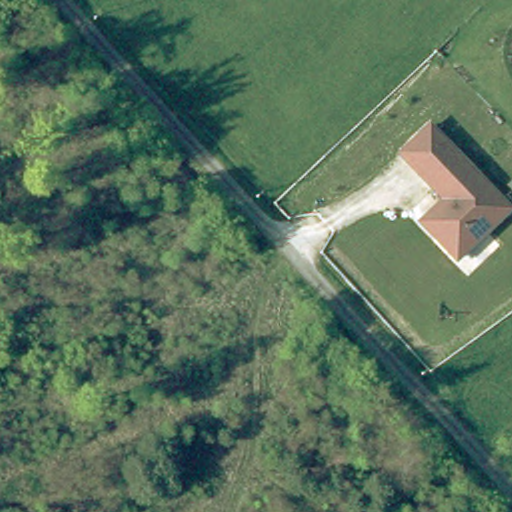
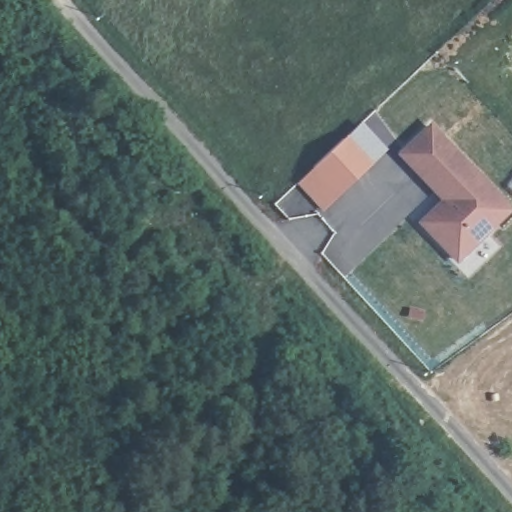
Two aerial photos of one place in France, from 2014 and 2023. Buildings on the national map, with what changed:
unchanged [(445,201),(400,155),(430,127),(509,210),(457,260),(428,230),(422,223),(445,201)]
new [(371,163),(323,210),(297,182),(346,136),(371,163)]

